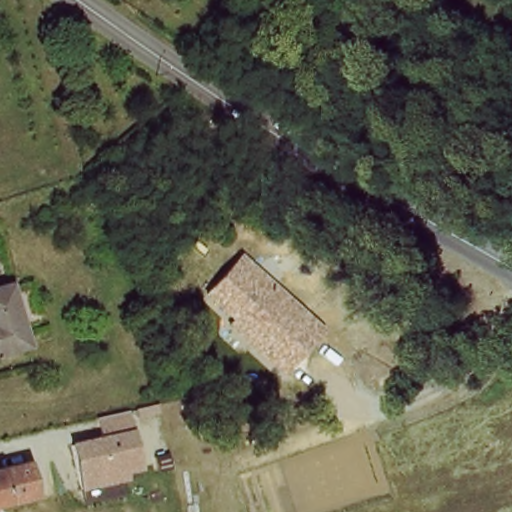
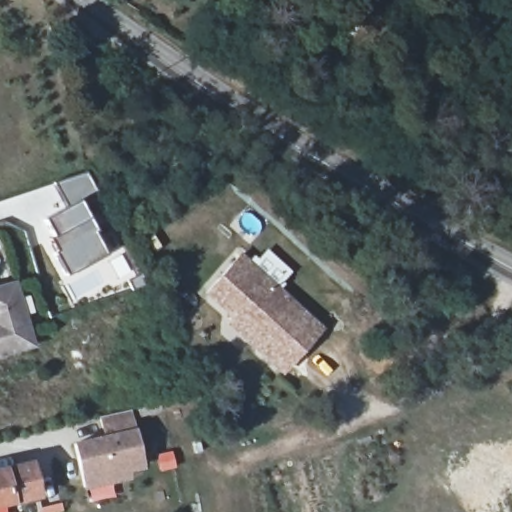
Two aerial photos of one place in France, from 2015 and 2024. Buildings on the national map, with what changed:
new [(66,278),(50,247),(49,239),(53,237),(43,221),(64,208),(51,186),(88,173),(99,192),(80,201),(111,256),(66,278)]
unchanged [(244,252),(328,328),(285,373),(228,326),(232,319),(205,295),(244,252)]
unchanged [(0,358),(0,287),(13,283),(34,346),(0,358)]
unchanged [(130,408),(137,430),(146,468),(131,473),(132,478),(84,489),(73,442),(106,436),(100,415),(130,408)]
unchanged [(51,461),(57,492),(0,503),(0,469),(51,461)]

